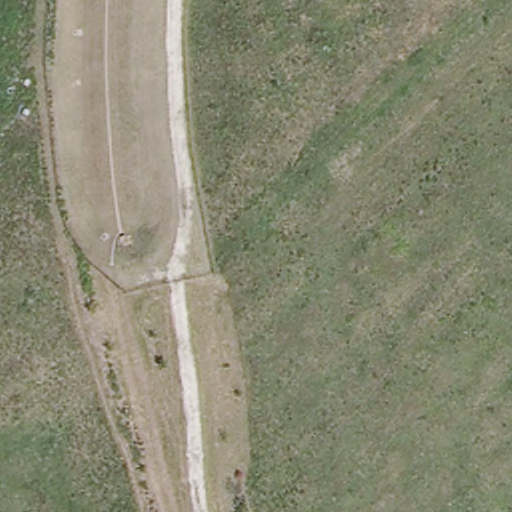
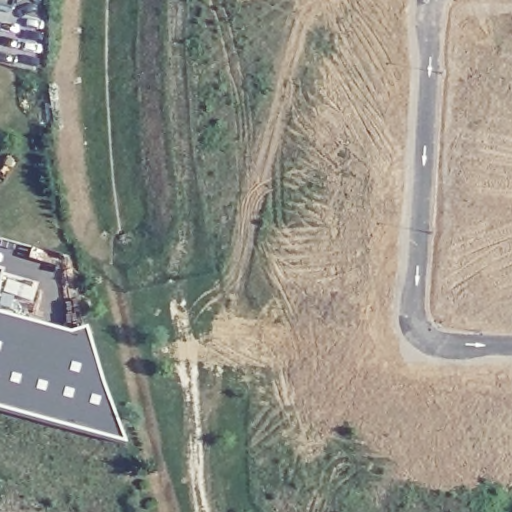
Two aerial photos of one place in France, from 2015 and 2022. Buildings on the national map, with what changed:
new [(0,11),(0,0),(13,0),(10,14),(0,11)]
new [(0,286),(0,267),(5,269),(0,286)]
new [(87,328),(129,442),(0,407),(0,308),(77,333),(87,328)]

